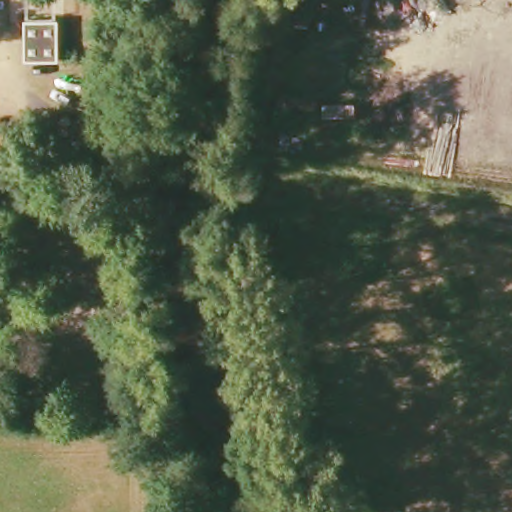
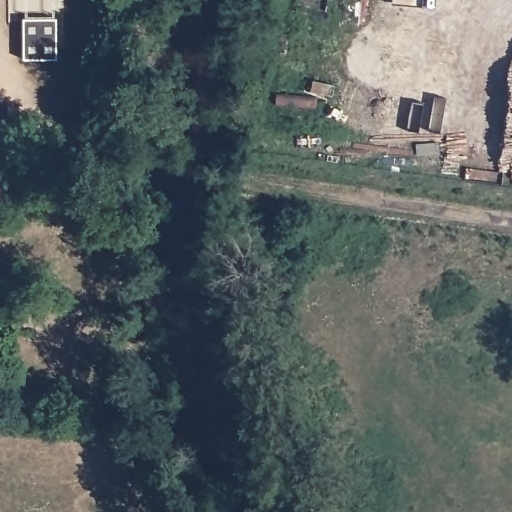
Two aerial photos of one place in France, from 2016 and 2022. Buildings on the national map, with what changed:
unchanged [(18,61),(17,20),(52,19),(52,60),(18,61)]
unchanged [(10,172),(0,171),(0,139),(11,140),(11,145),(10,172)]

